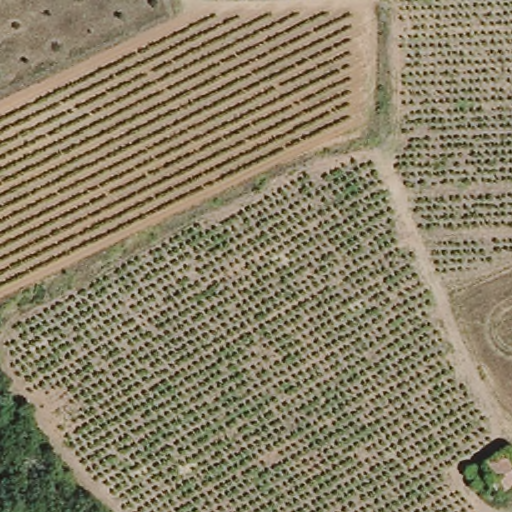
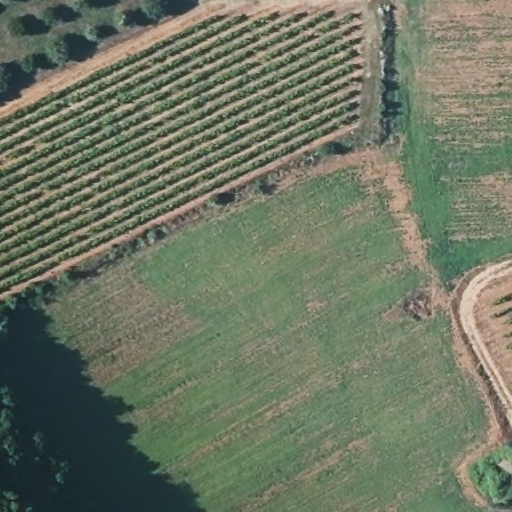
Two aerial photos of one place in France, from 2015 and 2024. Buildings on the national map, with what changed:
unchanged [(512,450),(512,483),(495,490),(482,458),(510,445),(512,450)]

